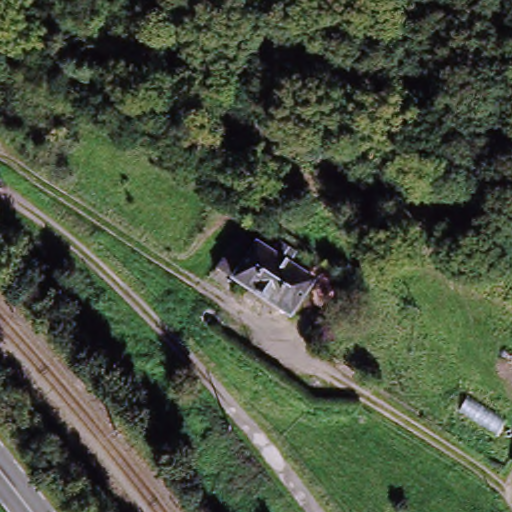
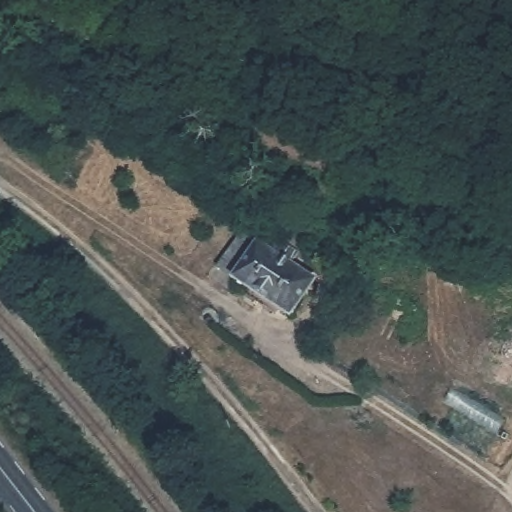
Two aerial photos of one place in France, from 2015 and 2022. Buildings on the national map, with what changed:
unchanged [(237,229),(277,251),(284,239),(302,250),(295,262),(317,275),(296,313),(214,266),(237,229)]

